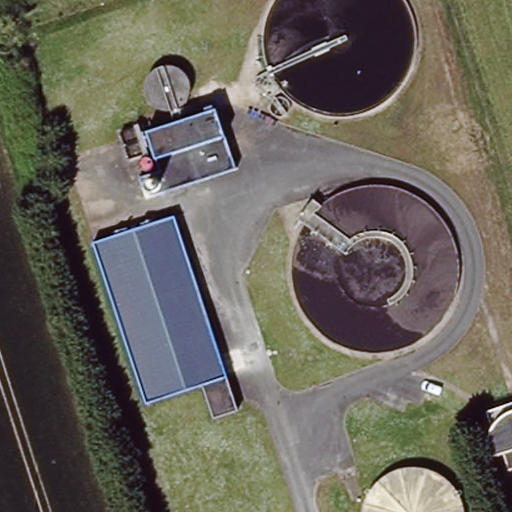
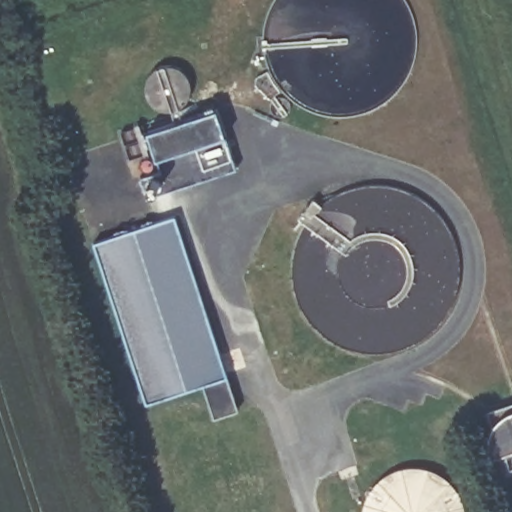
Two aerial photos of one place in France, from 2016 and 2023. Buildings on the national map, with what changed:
unchanged [(191,89),(191,90),(191,91),(191,92),(191,93),(191,94),(191,95),(190,95),(190,96),(189,97),(189,98),(188,99),(188,100),(188,101),(187,101),(187,102),(186,102),(186,103),(185,103),(185,104),(184,104),(184,105),(183,105),(183,106),(182,106),(181,106),(181,107),(180,107),(179,108),(178,108),(177,109),(176,109),(175,109),(174,109),(173,110),(172,110),(171,110),(170,110),(169,110),(168,110),(167,110),(166,110),(166,109),(165,109),(164,109),(163,109),(163,108),(162,108),(161,108),(161,107),(160,107),(159,107),(158,106),(157,105),(156,105),(156,104),(155,104),(155,103),(154,103),(154,102),(153,102),(153,101),(153,100),(152,100),(152,99),(151,99),(151,98),(151,97),(151,96),(150,96),(150,95),(149,94),(149,93),(149,92),(149,91),(149,90),(149,89),(149,88),(149,87),(149,86),(149,85),(149,84),(149,83),(150,83),(150,82),(150,81),(151,81),(151,80),(151,79),(151,78),(152,78),(152,77),(153,77),(153,76),(153,75),(154,75),(154,74),(155,74),(156,73),(156,72),(157,72),(158,72),(158,71),(159,71),(159,70),(160,70),(161,70),(161,69),(162,69),(163,69),(164,68),(165,68),(166,68),(167,68),(168,68),(168,67),(169,68),(169,67),(171,67),(171,68),(172,68),(173,68),(174,68),(175,68),(176,68),(177,69),(178,69),(179,69),(179,70),(180,70),(181,70),(181,71),(182,71),(183,71),(183,72),(184,73),(185,74),(186,74),(186,75),(187,76),(188,76),(188,77),(188,78),(188,79),(189,79),(189,80),(189,81),(190,81),(190,82),(191,83),(191,84),(191,85),(191,86),(191,87),(191,88),(191,89)]
unchanged [(216,111),(234,171),(166,191),(149,131),(216,111)]
unchanged [(231,412),(209,419),(198,387),(136,403),(84,243),(168,218),(231,412)]
unchanged [(504,451),(494,452),(493,429),(505,414),(512,411),(512,470),(504,451)]

